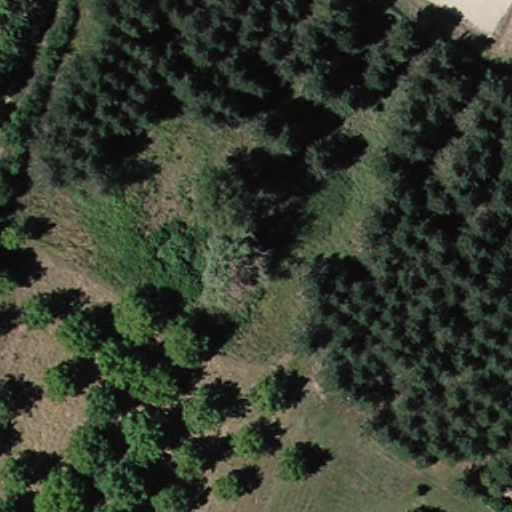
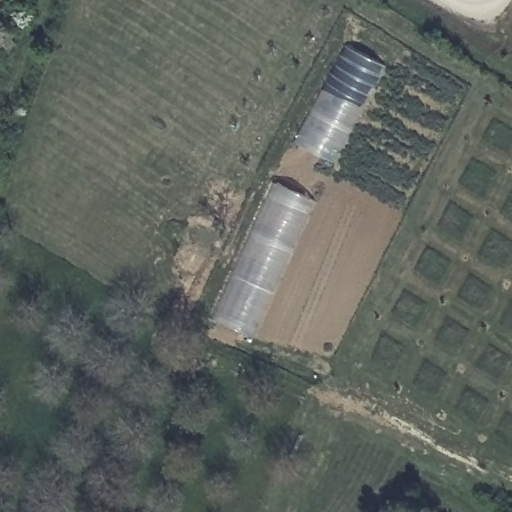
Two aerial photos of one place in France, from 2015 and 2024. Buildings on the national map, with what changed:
new [(347,45),(386,66),(335,165),(294,146),(347,45)]
new [(217,317),(278,183),(318,200),(257,336),(217,317)]

